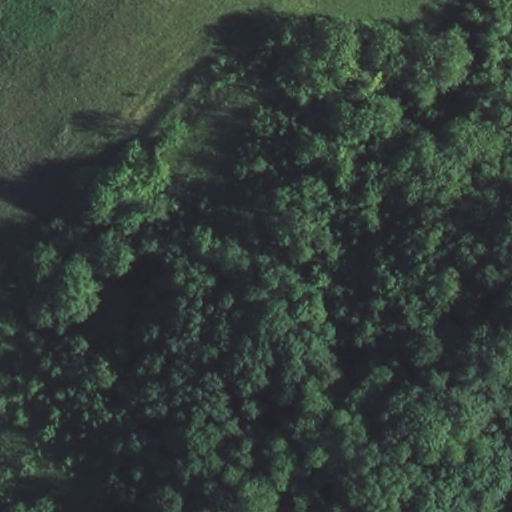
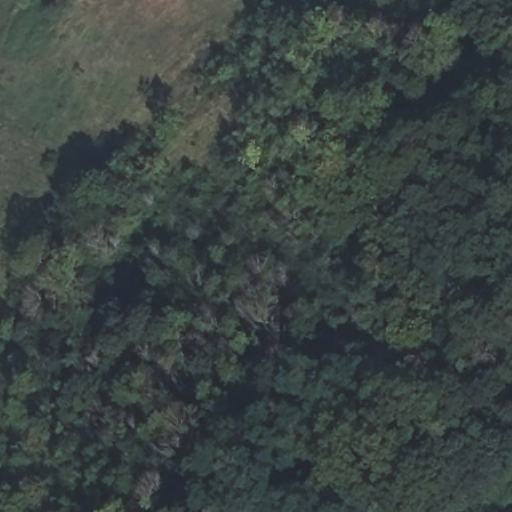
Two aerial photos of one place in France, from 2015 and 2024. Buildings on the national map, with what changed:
[]

